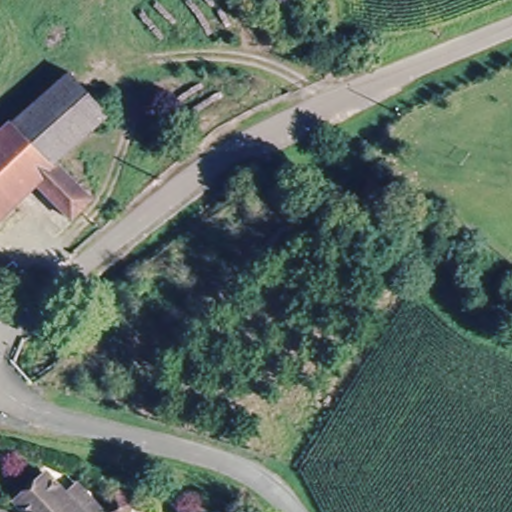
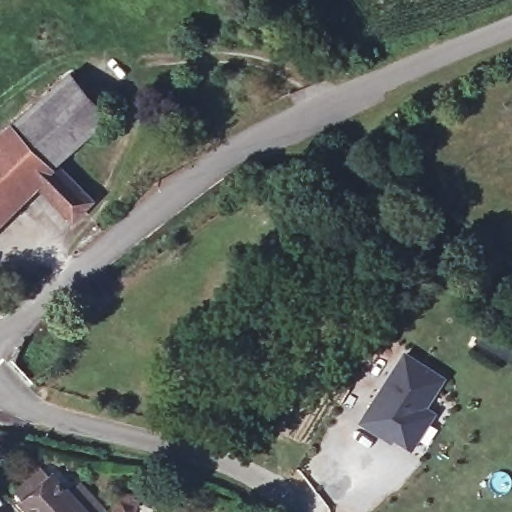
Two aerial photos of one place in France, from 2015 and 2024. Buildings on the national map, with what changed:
unchanged [(76,70),(113,115),(60,161),(17,121),(76,70)]
unchanged [(60,161),(97,199),(77,216),(39,181),(0,221),(0,127),(5,121),(10,128),(17,121),(60,161)]
unchanged [(375,214),(357,204),(366,189),(385,200),(375,214)]
new [(403,351),(446,377),(426,407),(436,413),(411,450),(395,440),(391,443),(357,422),(403,351)]
unchanged [(60,495),(70,486),(95,512),(18,512),(11,505),(41,476),(60,495)]
unchanged [(126,512),(105,512),(111,493),(130,500),(126,512)]

